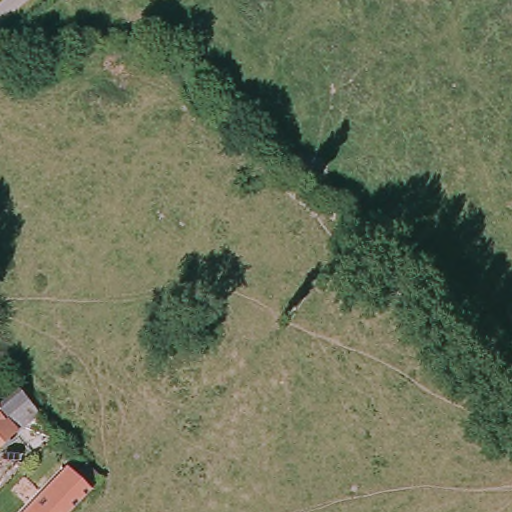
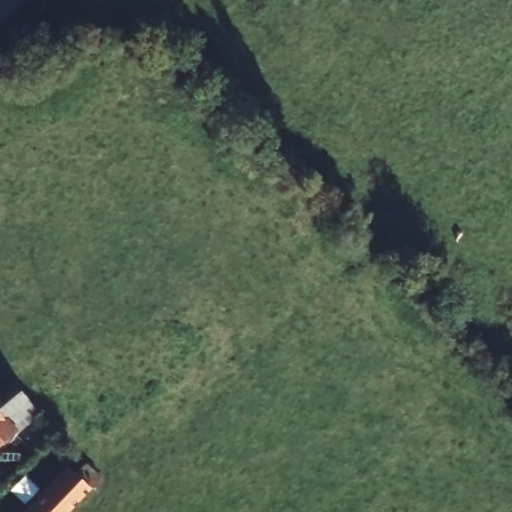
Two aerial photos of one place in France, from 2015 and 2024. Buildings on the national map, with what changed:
unchanged [(27,405),(37,416),(0,449),(0,394),(10,385),(27,405)]
unchanged [(87,461),(102,478),(95,483),(98,488),(94,492),(75,512),(36,512),(65,484),(81,467),(87,461)]

